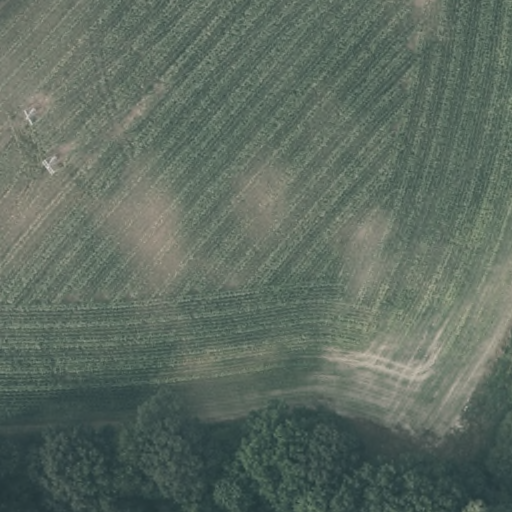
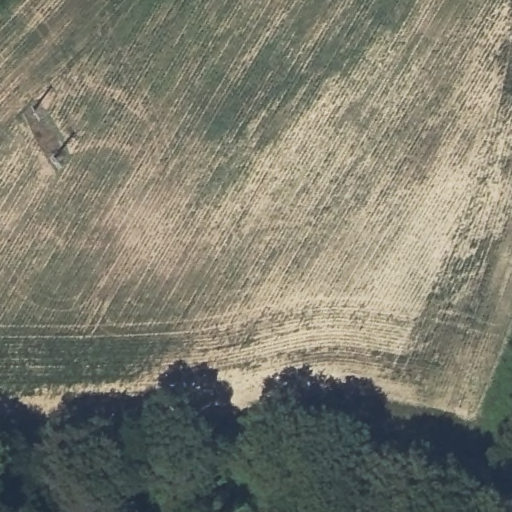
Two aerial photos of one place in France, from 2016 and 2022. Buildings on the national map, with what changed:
[]

